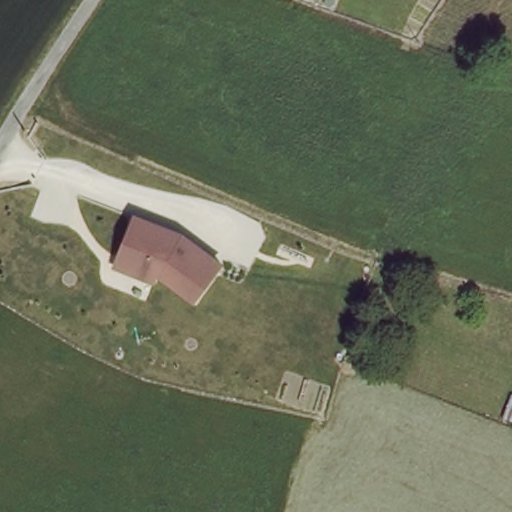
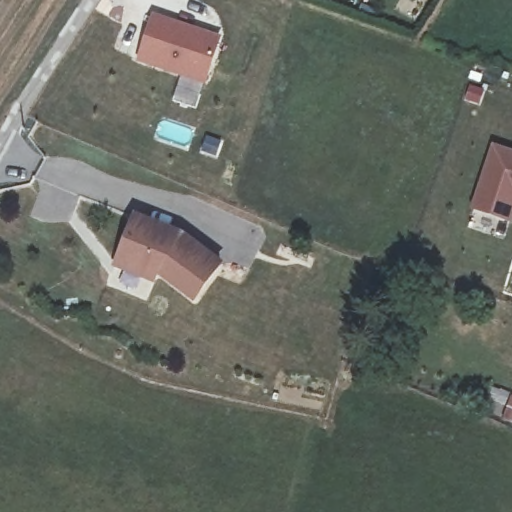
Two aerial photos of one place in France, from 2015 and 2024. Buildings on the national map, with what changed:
new [(152,12),(222,36),(205,85),(137,61),(152,12)]
new [(508,229),(469,217),(491,151),(512,157),(512,214),(508,229)]
unchanged [(190,302),(157,277),(153,282),(112,260),(130,210),(177,227),(220,262),(190,302)]

